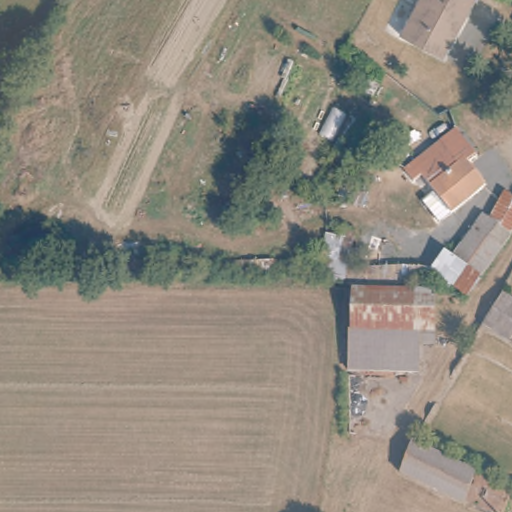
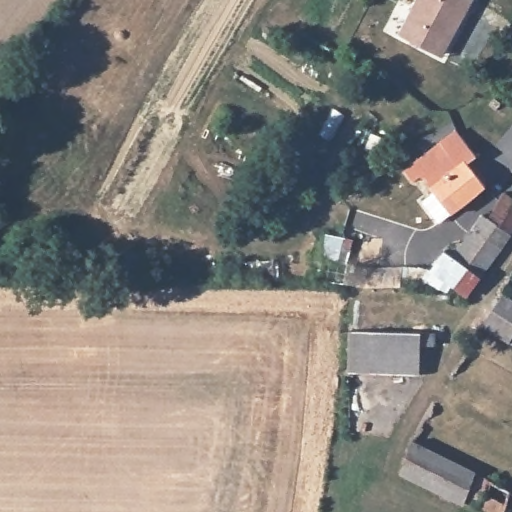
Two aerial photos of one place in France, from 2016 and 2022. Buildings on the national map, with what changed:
unchanged [(446,54),(442,51),(402,31),(406,25),(418,0),(473,0),(459,29),(451,45),(446,54)]
unchanged [(461,127),(475,145),(468,151),(489,177),(452,207),(427,177),(421,183),(408,167),(461,127)]
unchanged [(430,262),(445,245),(451,249),(478,214),(485,219),(504,193),(512,199),(512,232),(467,293),(430,262)]
unchanged [(357,286),(441,288),(438,330),(355,328),(357,286)]
unchanged [(512,300),(512,335),(488,318),(505,295),(512,300)]
unchanged [(438,330),(437,343),(424,343),(422,367),(352,366),(353,343),(355,328),(438,330)]
unchanged [(427,481),(402,467),(417,435),(443,451),(427,481)]
unchanged [(463,500),(427,481),(443,451),(479,472),(463,500)]
unchanged [(506,512),(487,512),(463,500),(479,472),(512,492),(512,505),(511,504),(506,512)]

